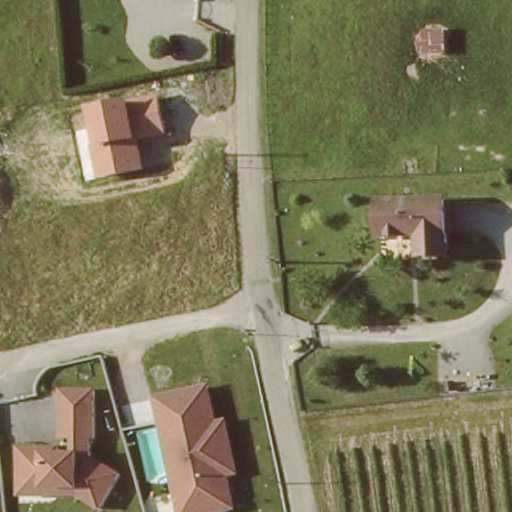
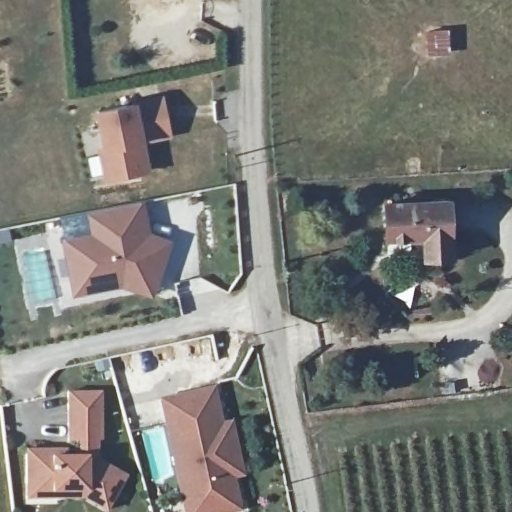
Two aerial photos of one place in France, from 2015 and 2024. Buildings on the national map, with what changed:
unchanged [(94,111),(162,97),(172,137),(144,142),(150,174),(106,182),(94,111)]
new [(142,286),(127,281),(80,290),(66,215),(147,199),(153,232),(174,240),(160,280),(156,292),(142,286)]
unchanged [(454,256),(428,257),(427,237),(389,239),(387,205),(450,202),(454,256)]
unchanged [(235,420),(246,479),(236,481),(241,512),(183,512),(159,399),(218,387),(224,422),(235,420)]
unchanged [(68,393),(97,394),(97,441),(92,461),(118,473),(103,510),(82,500),(20,497),(24,448),(47,447),(47,454),(74,453),(77,438),(66,439),(68,393)]

